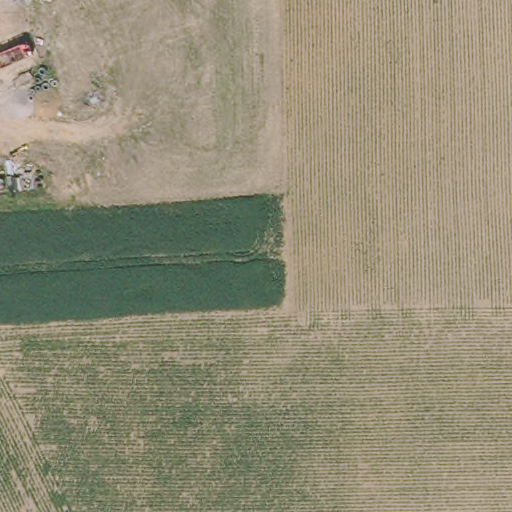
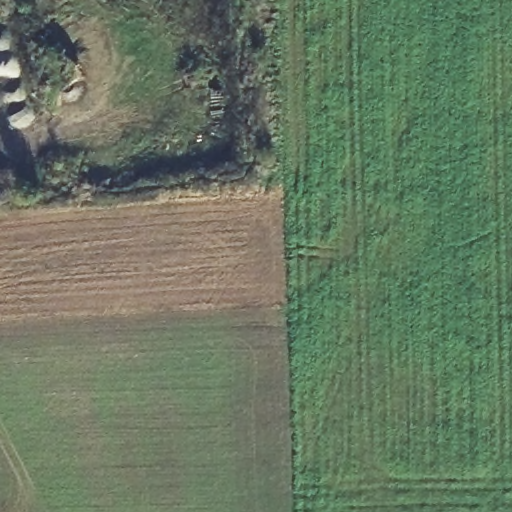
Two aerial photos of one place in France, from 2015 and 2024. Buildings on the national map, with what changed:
[]

